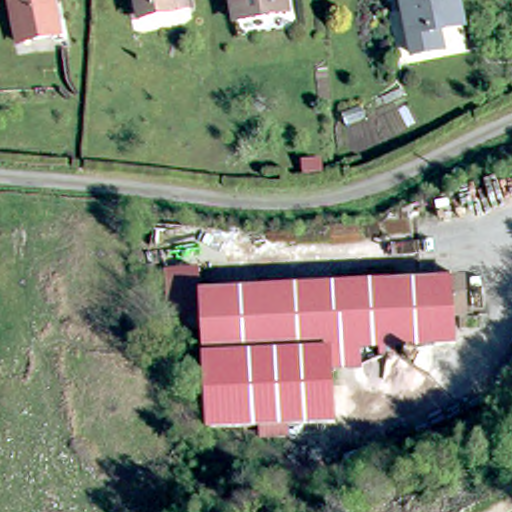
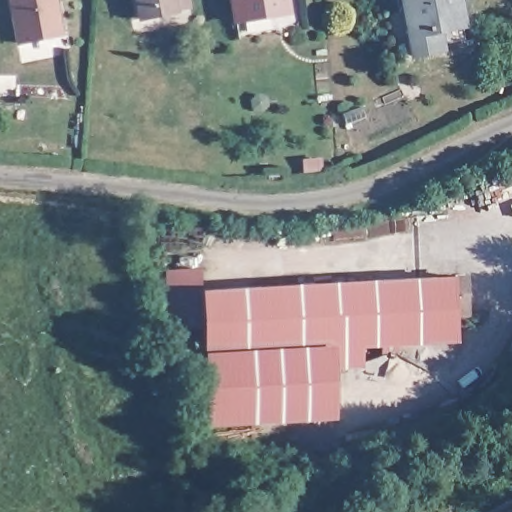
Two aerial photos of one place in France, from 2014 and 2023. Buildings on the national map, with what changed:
unchanged [(50,37),(16,45),(7,0),(49,0),(50,6),(56,36),(50,37)]
unchanged [(187,6),(136,17),(132,0),(186,0),(187,6)]
unchanged [(283,17),(241,26),(235,0),(280,0),(283,17)]
unchanged [(430,49),(406,53),(398,0),(454,0),(460,30),(441,35),(441,47),(430,49)]
unchanged [(292,432),(270,433),(265,433),(265,423),(213,426),(209,326),(175,327),(174,292),(173,270),(190,269),(207,268),(208,291),(471,278),(472,309),(459,310),(461,345),(336,351),(339,414),(339,420),(314,421),(292,422),(292,427),(292,432)]

